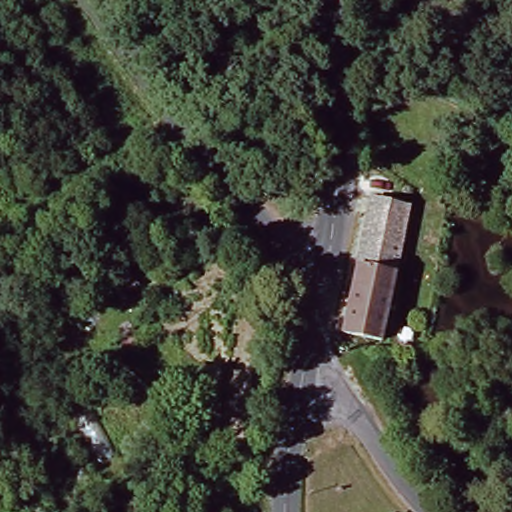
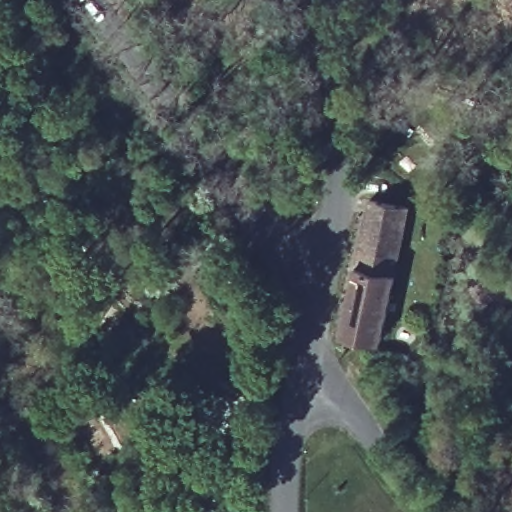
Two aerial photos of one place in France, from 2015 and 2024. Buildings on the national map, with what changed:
unchanged [(384,345),(348,337),(373,206),(409,213),(384,345)]
unchanged [(99,265),(114,254),(151,303),(137,315),(126,300),(99,265)]

